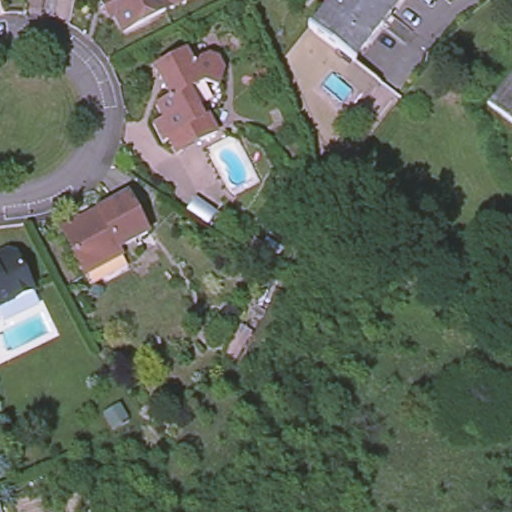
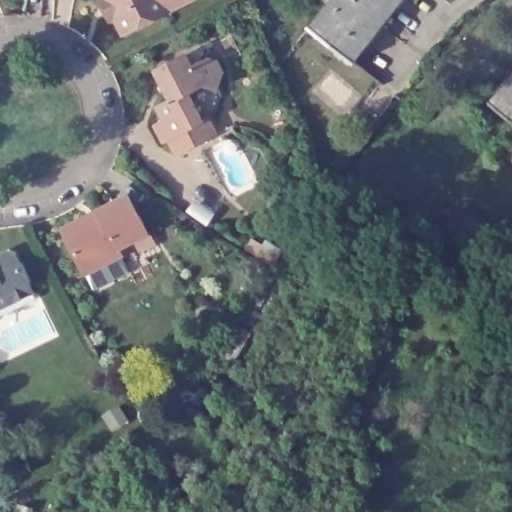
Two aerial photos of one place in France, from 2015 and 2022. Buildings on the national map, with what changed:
unchanged [(103,16),(99,6),(100,0),(195,0),(162,16),(119,38),(110,20),(103,16)]
unchanged [(402,0),(349,67),(304,32),(328,0),(402,0)]
unchanged [(184,55),(190,66),(203,59),(217,61),(222,71),(217,88),(203,84),(187,92),(202,122),(209,119),(217,134),(178,155),(170,140),(164,144),(155,126),(164,121),(157,107),(170,100),(154,71),(184,55)]
unchanged [(489,102),(512,75),(512,123),(489,102)]
unchanged [(509,160),(512,156),(512,163),(509,160)]
unchanged [(122,250),(125,256),(87,275),(67,234),(64,227),(100,210),(131,194),(151,235),(122,250)]
unchanged [(1,259),(13,254),(21,256),(37,293),(0,311),(0,265),(1,265),(1,259)]

